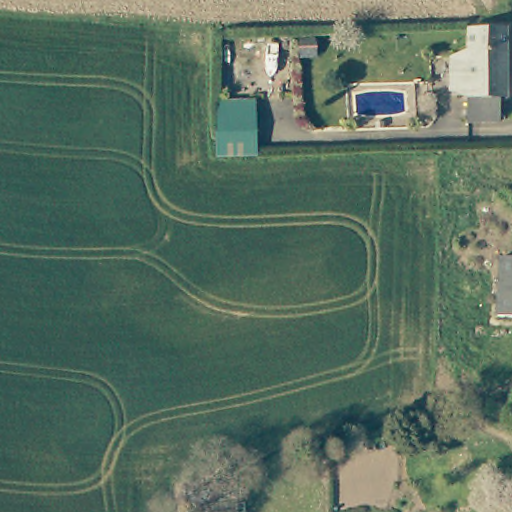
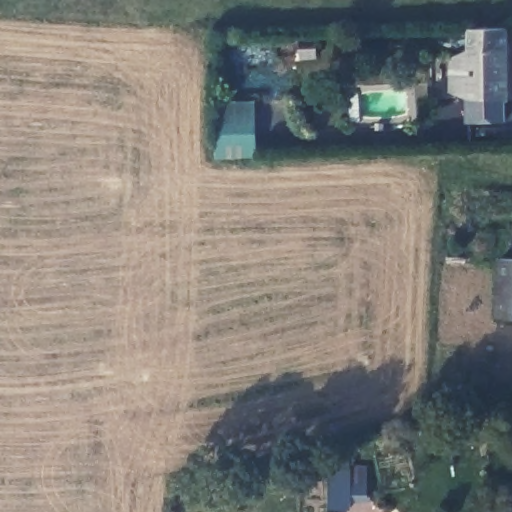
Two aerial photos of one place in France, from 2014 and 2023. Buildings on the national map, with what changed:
unchanged [(502,30),(502,96),(499,96),(499,121),(467,120),(468,93),(456,93),(456,56),(469,56),(469,30),(502,30)]
unchanged [(235,152),(235,105),(274,106),(273,152),(235,152)]
unchanged [(501,256),(512,257),(512,318),(497,317),(501,256)]

